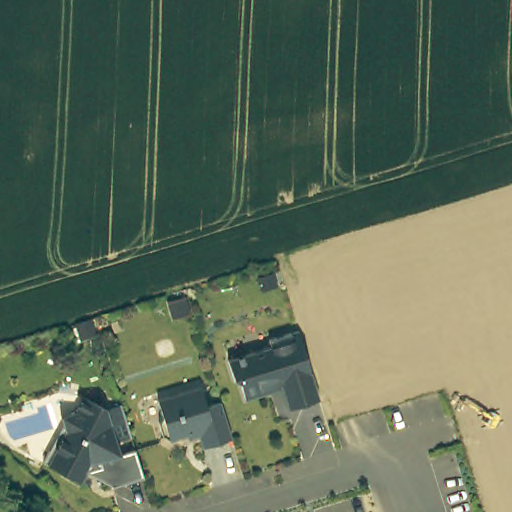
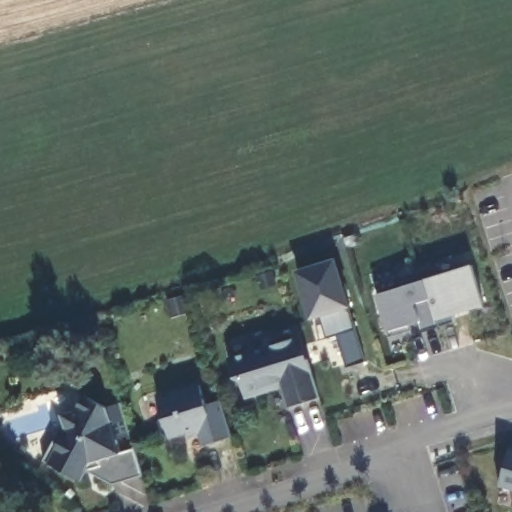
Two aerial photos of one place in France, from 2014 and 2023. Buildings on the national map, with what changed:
new [(333,259),(348,307),(355,330),(364,363),(346,368),(336,336),(326,339),(320,317),(310,321),(295,272),(333,259)]
new [(471,265),(483,307),(452,316),(455,323),(421,333),(416,323),(408,326),(410,331),(389,337),(387,331),(376,296),(471,265)]
unchanged [(239,382),(234,363),(276,350),(274,342),(297,336),(303,333),(313,363),(325,402),(294,411),(286,386),(273,390),(275,394),(250,402),(245,385),(239,382)]
unchanged [(167,418),(162,402),(205,389),(211,409),(226,404),(232,424),(237,441),(208,449),(203,432),(175,441),(167,438),(164,425),(167,418)]
unchanged [(85,484),(48,464),(54,453),(68,426),(65,418),(81,413),(89,399),(112,411),(126,407),(129,414),(136,438),(121,443),(125,456),(140,451),(141,456),(146,471),(149,479),(118,488),(110,484),(91,474),(85,484)]

